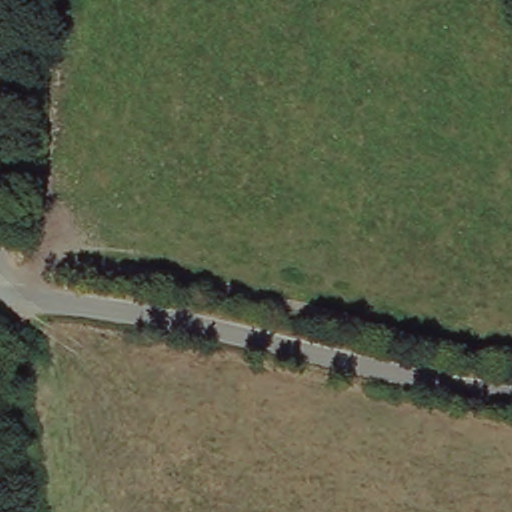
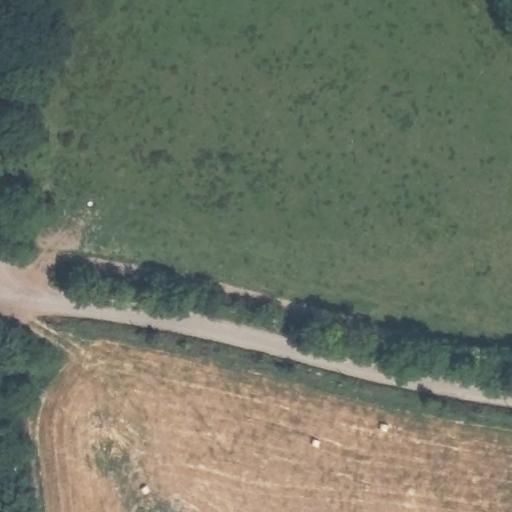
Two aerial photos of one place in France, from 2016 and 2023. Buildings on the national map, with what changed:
[]

